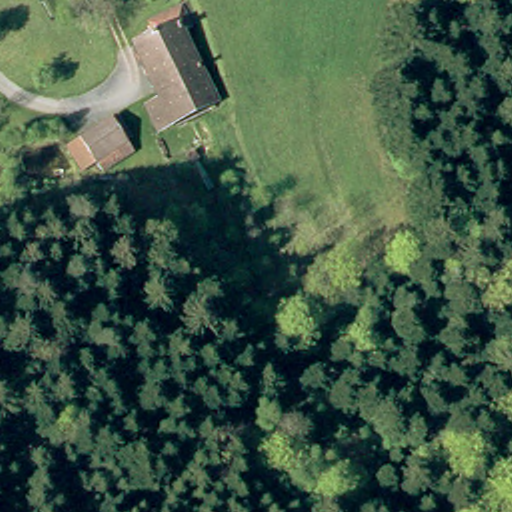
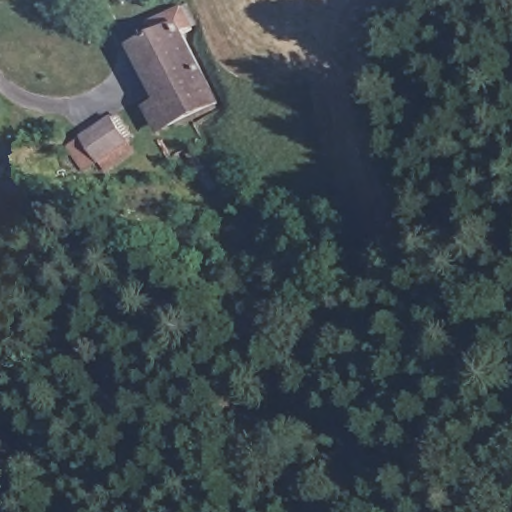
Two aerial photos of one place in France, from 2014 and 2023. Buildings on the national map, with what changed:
unchanged [(137,42),(156,33),(150,19),(182,2),(191,21),(180,26),(213,92),(168,115),(137,42)]
unchanged [(66,135),(99,116),(113,141),(80,160),(66,135)]

